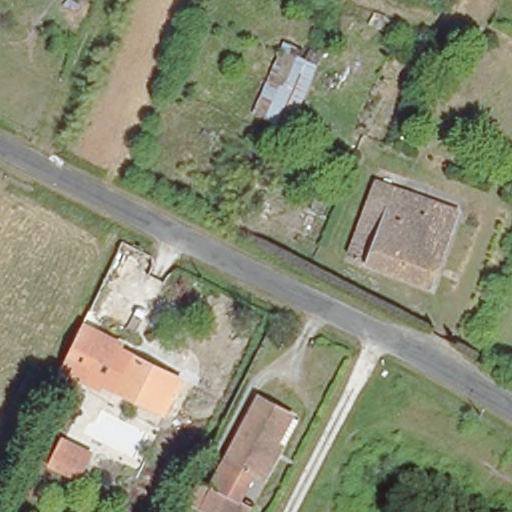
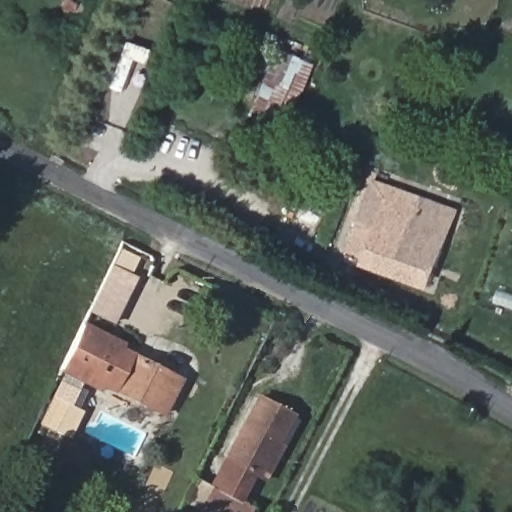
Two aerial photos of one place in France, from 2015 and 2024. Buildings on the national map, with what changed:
unchanged [(300,55),(305,47),(322,54),(288,129),(249,116),(282,48),(300,55)]
unchanged [(397,278),(347,260),(377,186),(425,204),(397,278)]
unchanged [(317,220),(307,241),(246,216),(255,192),(317,220)]
unchanged [(457,218),(428,290),(397,278),(425,204),(457,218)]
new [(123,241),(142,251),(130,274),(111,265),(123,241)]
new [(116,323),(90,312),(109,266),(135,277),(116,323)]
unchanged [(163,410),(157,408),(102,381),(97,378),(95,383),(81,375),(101,337),(120,347),(175,375),(181,378),(163,410)]
unchanged [(264,474),(258,471),(225,453),(257,392),(292,409),(276,438),(281,442),(264,474)]
unchanged [(70,471),(59,466),(71,445),(74,439),(83,444),(100,453),(94,464),(85,479),(70,471)]
unchanged [(205,512),(184,501),(194,479),(251,508),(249,512),(205,512)]

